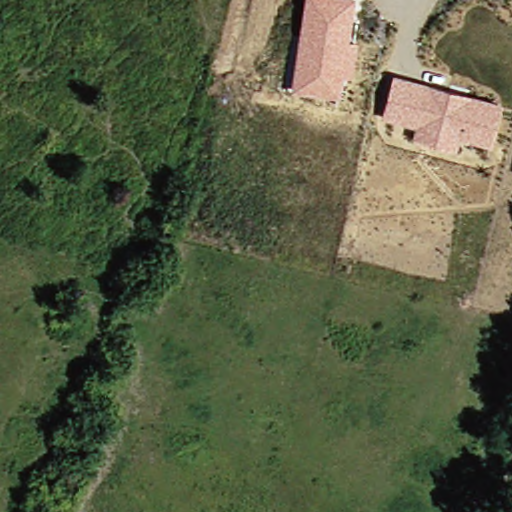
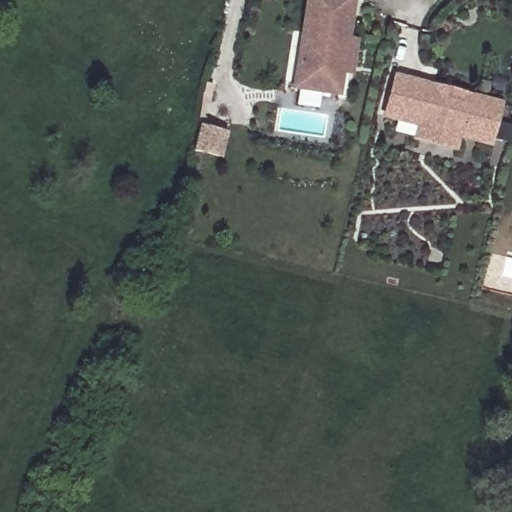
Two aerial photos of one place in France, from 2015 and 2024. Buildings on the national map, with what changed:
unchanged [(348,37),(356,38),(351,72),(350,72),(346,96),(286,87),(295,29),(305,30),(309,0),(353,0),(348,37)]
unchanged [(451,89),(453,82),(472,87),(470,95),(501,103),(491,141),(460,133),(460,135),(456,146),(418,136),(421,123),(386,114),(397,75),(451,89)]
new [(223,155),(216,154),(197,150),(203,124),(222,128),(229,130),(223,155)]

